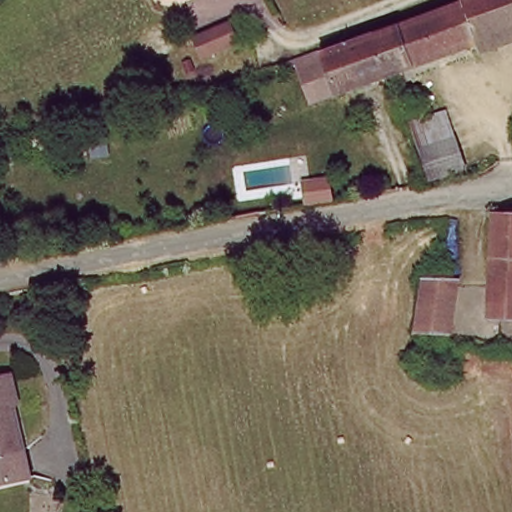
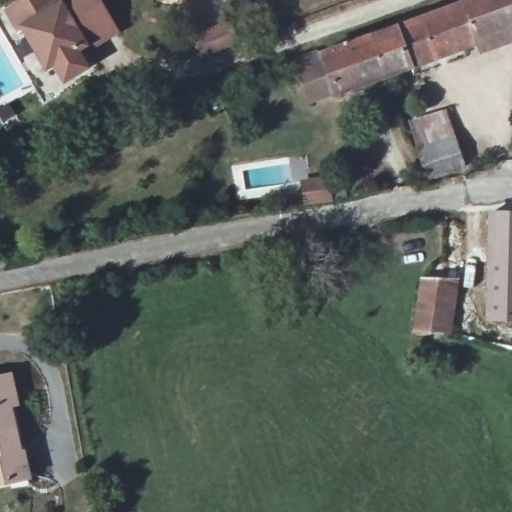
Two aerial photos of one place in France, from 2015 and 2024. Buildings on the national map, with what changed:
new [(89,48),(80,54),(90,68),(63,84),(53,65),(44,71),(21,29),(17,32),(3,9),(19,0),(59,0),(60,0),(63,0),(66,4),(72,0),(99,0),(119,32),(89,48)]
unchanged [(333,94),(318,53),(369,34),(458,2),(458,0),(512,0),(512,29),(384,75),(333,94)]
unchanged [(204,50),(196,32),(207,27),(230,17),(238,35),(215,45),(211,47),(204,50)]
unchanged [(211,81),(219,78),(224,89),(215,92),(211,81)]
unchanged [(459,154),(427,164),(417,132),(449,120),(459,154)]
demolished [(494,236),(495,212),(495,208),(512,208),(512,313),(491,313),(494,236)]
new [(490,213),(512,213),(512,258),(488,257),(490,213)]
unchanged [(425,329),(419,329),(420,308),(420,282),(420,271),(427,272),(427,265),(428,264),(428,263),(429,261),(430,260),(432,258),(433,257),(435,256),(437,255),(440,256),(442,256),(443,257),(444,258),(446,260),(446,263),(447,263),(447,265),(447,272),(452,272),(456,272),(456,274),(456,281),(455,308),(455,321),(455,326),(454,330),(451,330),(425,329)]
new [(488,257),(512,258),(512,320),(488,318),(488,257)]
unchanged [(8,481),(0,483),(0,376),(9,374),(15,404),(7,405),(16,447),(23,445),(28,465),(30,476),(8,481)]

